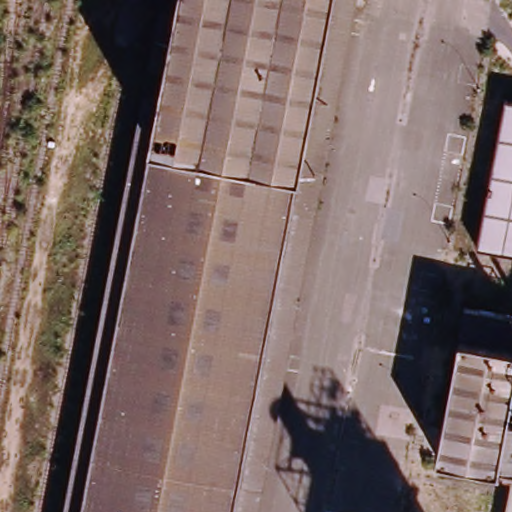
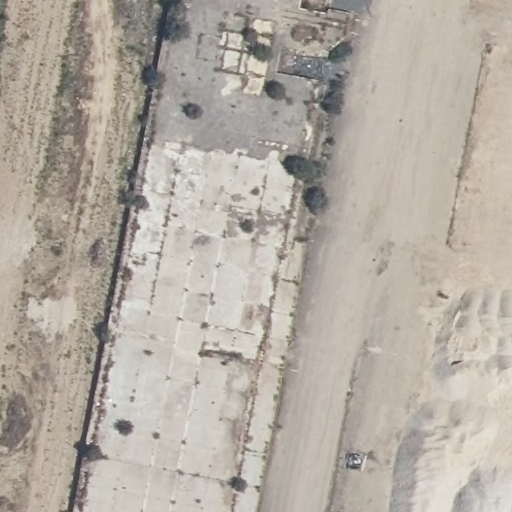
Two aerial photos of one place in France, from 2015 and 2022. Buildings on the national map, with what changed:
demolished [(228,512),(67,512),(107,302),(165,0),(326,0),(228,512)]
unchanged [(502,100),(512,101),(512,253),(474,246),(502,100)]
unchanged [(512,318),(512,391),(507,417),(512,418),(512,478),(502,476),(432,463),(462,309),(512,318)]
unchanged [(502,484),(502,476),(512,478),(512,512),(505,512),(510,486),(502,484)]

